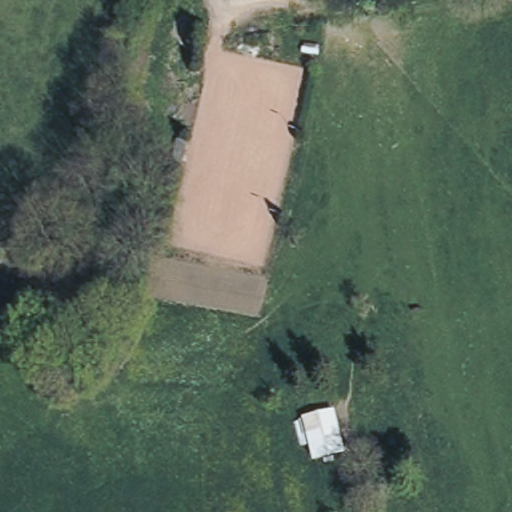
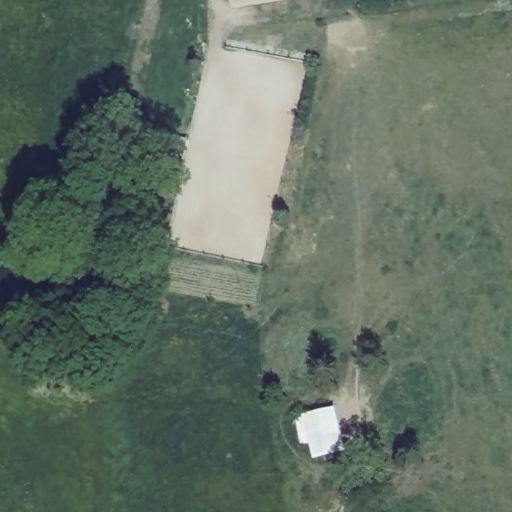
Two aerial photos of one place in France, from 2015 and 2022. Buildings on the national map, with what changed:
unchanged [(317,453),(311,427),(307,410),(337,403),(346,446),(317,453)]

